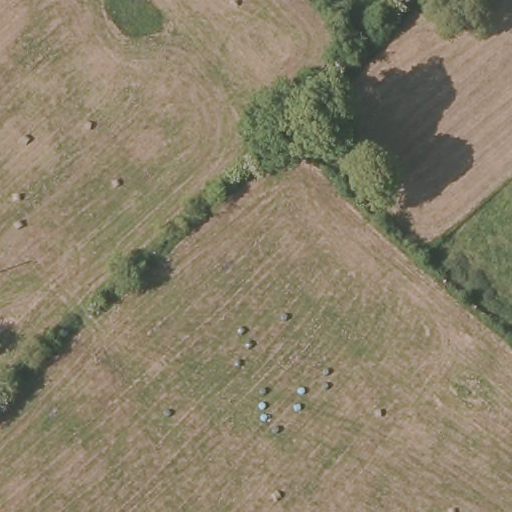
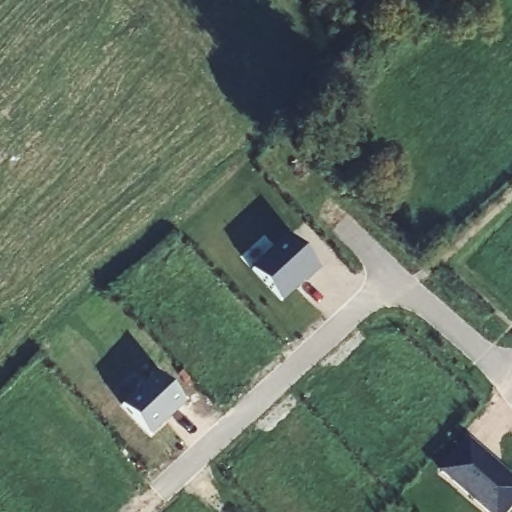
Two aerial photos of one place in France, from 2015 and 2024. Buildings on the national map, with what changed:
new [(252,271),(289,237),(319,269),(281,304),(252,271)]
new [(121,405),(157,373),(186,404),(151,437),(121,405)]
new [(467,439),(512,478),(512,506),(507,512),(484,512),(438,471),(467,439)]

